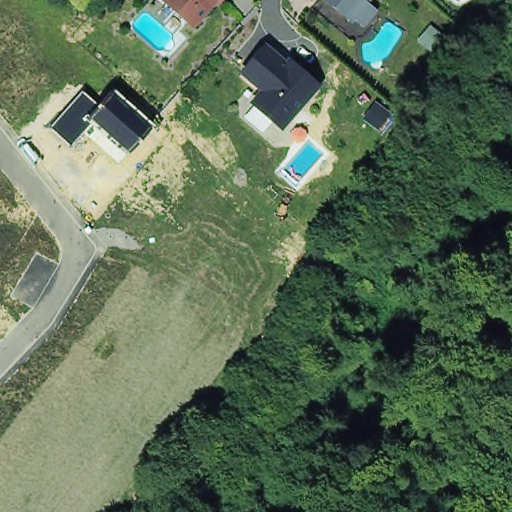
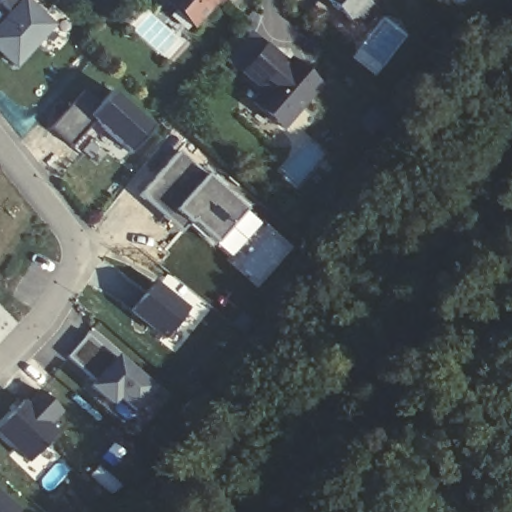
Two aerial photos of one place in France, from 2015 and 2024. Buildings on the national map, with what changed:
new [(0,52),(0,25),(4,20),(7,23),(14,15),(0,3),(0,0),(27,0),(54,25),(17,67),(0,52)]
unchanged [(175,0),(224,0),(202,24),(175,0)]
unchanged [(355,19),(352,22),(325,0),(371,0),(367,4),(377,11),(365,27),(355,19)]
unchanged [(431,52),(420,42),(432,27),(443,38),(431,52)]
unchanged [(277,124),(254,104),(265,91),(245,73),(266,48),(287,66),(291,62),(296,67),(319,86),(297,112),(283,129),(277,124)]
unchanged [(95,123),(70,149),(52,129),(84,92),(100,106),(114,90),(155,125),(129,152),(95,123)]
new [(181,150),(248,210),(218,244),(193,221),(191,223),(179,211),(171,220),(142,195),(181,150)]
new [(157,282),(190,309),(167,337),(134,310),(157,282)]
unchanged [(90,333),(118,358),(120,356),(156,387),(137,410),(121,396),(115,403),(94,386),(98,381),(70,356),(90,333)]
new [(29,405),(42,391),(62,410),(49,425),(57,433),(32,460),(0,430),(0,428),(25,402),(29,405)]
unchanged [(19,512),(0,512),(0,493),(21,510),(19,512)]

